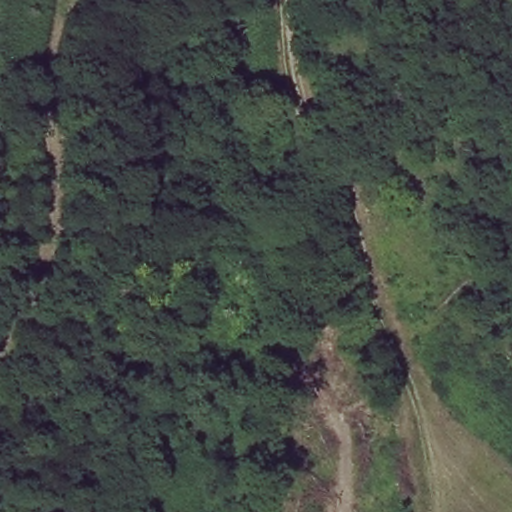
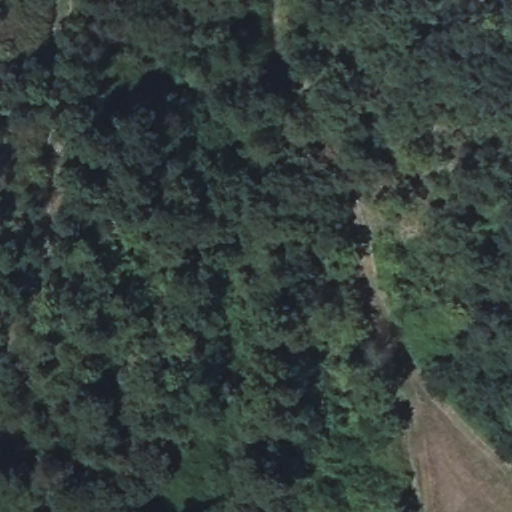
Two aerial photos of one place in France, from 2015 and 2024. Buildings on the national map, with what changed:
[]

